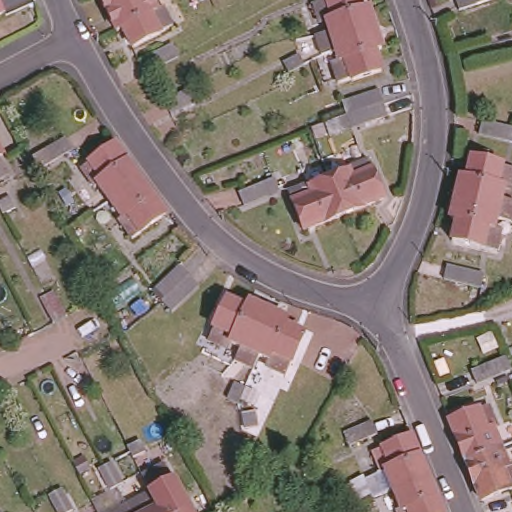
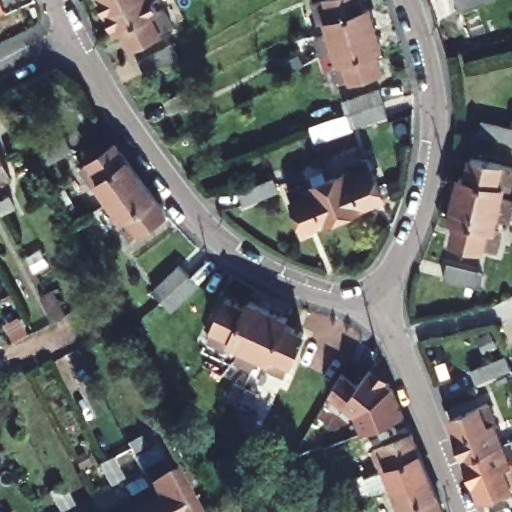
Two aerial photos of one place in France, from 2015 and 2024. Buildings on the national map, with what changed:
unchanged [(150,0),(147,1),(137,5),(129,10),(130,12),(133,21),(126,25),(120,28),(118,29),(112,32),(98,0),(154,0),(150,0)]
unchanged [(148,5),(153,16),(160,13),(167,28),(152,35),(152,37),(126,48),(118,29),(120,28),(126,25),(133,21),(130,12),(129,10),(137,5),(147,1),(150,0),(154,0),(158,0),(148,5)]
unchanged [(347,8),(340,10),(343,23),(339,24),(325,28),(318,28),(325,26),(320,10),(315,12),(312,0),(357,0),(358,5),(347,8)]
unchanged [(462,10),(459,0),(489,0),(462,10)]
unchanged [(315,47),(311,30),(318,28),(325,28),(339,24),(343,23),(340,10),(347,8),(358,5),(366,3),(375,45),(368,47),(360,49),(357,49),(352,51),(350,51),(347,37),(345,37),(334,40),(327,42),(325,43),(322,45),(315,47)]
unchanged [(373,67),(345,75),(343,73),(330,76),(327,60),(332,58),(328,44),(322,45),(325,43),(327,42),(334,40),(345,37),(347,37),(350,51),(352,51),(357,49),(360,49),(368,47),(373,67)]
unchanged [(153,65),(144,70),(138,57),(172,40),(178,52),(153,65)]
unchanged [(300,56),(292,61),(286,52),(302,44),(307,54),(300,57),(300,56)]
unchanged [(170,108),(165,96),(180,88),(190,83),(195,95),(170,108)]
unchanged [(381,89),(387,115),(352,124),(347,101),(345,99),(358,95),(381,89)]
unchanged [(512,120),(512,133),(481,129),(482,117),(512,120)]
unchanged [(38,162),(32,151),(65,133),(70,145),(38,162)]
unchanged [(97,177),(90,182),(79,165),(90,158),(90,156),(115,137),(140,172),(109,195),(97,177)]
unchanged [(0,166),(0,144),(8,161),(0,166)]
unchanged [(493,197),(480,194),(473,192),(475,180),(470,179),(458,176),(462,154),(506,163),(503,181),(497,180),(493,194),(500,196),(493,197)]
unchanged [(330,177),(348,170),(346,165),(366,157),(370,170),(372,170),(382,198),(343,214),(330,177)]
unchanged [(140,172),(167,207),(138,227),(138,226),(128,233),(115,216),(121,212),(109,195),(140,172)]
unchanged [(275,173),(279,185),(245,198),(240,186),(275,173)]
unchanged [(492,209),(490,208),(473,205),(471,204),(468,219),(460,218),(450,216),(443,215),(445,206),(446,201),(450,181),(450,175),(458,176),(470,179),(475,180),(473,192),(480,194),(493,197),(500,196),(508,198),(505,212),(497,211),(492,209)]
unchanged [(304,229),(288,188),(310,179),(311,185),(330,177),(343,214),(304,229)]
unchanged [(0,201),(12,194),(18,205),(6,212),(0,201)]
unchanged [(487,227),(493,228),(490,245),(445,238),(450,216),(460,218),(468,219),(471,204),(473,205),(490,208),(492,209),(497,211),(490,210),(487,227)]
unchanged [(163,303),(155,292),(148,280),(180,258),(187,270),(195,282),(163,303)]
unchanged [(483,270),(481,285),(445,278),(447,264),(483,270)]
unchanged [(239,313),(252,318),(245,336),(243,338),(241,341),(243,336),(228,330),(227,335),(210,329),(226,288),(245,296),(239,313)]
unchanged [(243,338),(245,336),(252,318),(239,313),(245,296),(248,289),(288,305),(287,311),(281,325),(280,329),(267,323),(267,324),(263,331),(260,340),(259,349),(257,355),(238,348),(241,341),(243,338)]
unchanged [(305,319),(295,346),(294,346),(288,360),(274,354),(276,350),(262,342),(259,349),(260,340),(263,331),(267,324),(267,323),(280,329),(281,325),(287,311),(305,319)]
unchanged [(470,368),(505,354),(510,366),(475,380),(470,368)]
new [(359,383),(370,367),(393,385),(405,416),(360,431),(355,414),(328,394),(342,373),(359,383)]
unchanged [(251,396),(246,408),(236,403),(243,388),(252,392),(251,396)]
unchanged [(450,418),(450,417),(454,415),(478,406),(478,404),(490,400),(497,422),(493,423),(501,442),(470,455),(465,457),(450,418)]
demolished [(353,406),(367,402),(371,414),(345,424),(341,412),(353,406)]
unchanged [(386,467),(380,469),(372,447),(383,442),(383,444),(413,433),(430,473),(422,476),(394,488),(386,467)]
unchanged [(128,444),(140,439),(145,449),(134,455),(128,444)]
unchanged [(510,462),(512,461),(512,485),(498,490),(481,497),(465,457),(470,455),(501,442),(510,462)]
unchanged [(167,456),(197,512),(166,512),(155,491),(144,468),(167,456)]
unchanged [(105,472),(112,469),(117,466),(128,487),(122,490),(116,493),(105,472)]
unchanged [(430,473),(445,512),(397,512),(396,508),(401,506),(394,488),(422,476),(430,473)]
unchanged [(155,491),(166,512),(137,512),(132,503),(155,491)]
unchanged [(62,496),(68,493),(78,512),(62,512),(55,499),(62,496)]
unchanged [(137,512),(116,512),(132,503),(137,512)]

